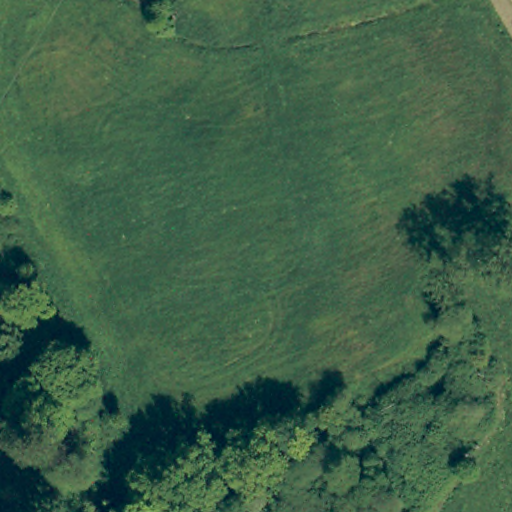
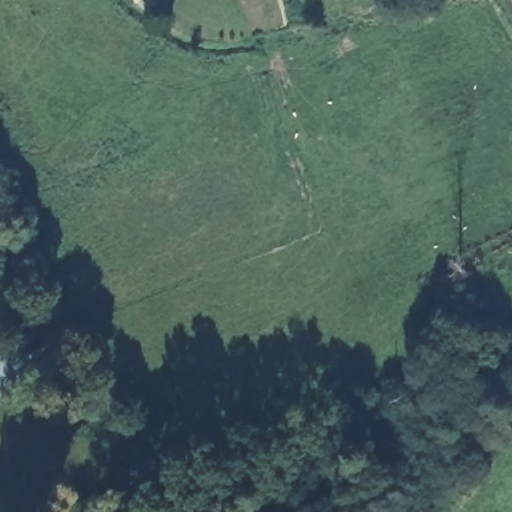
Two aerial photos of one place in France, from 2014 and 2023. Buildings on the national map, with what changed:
[]

